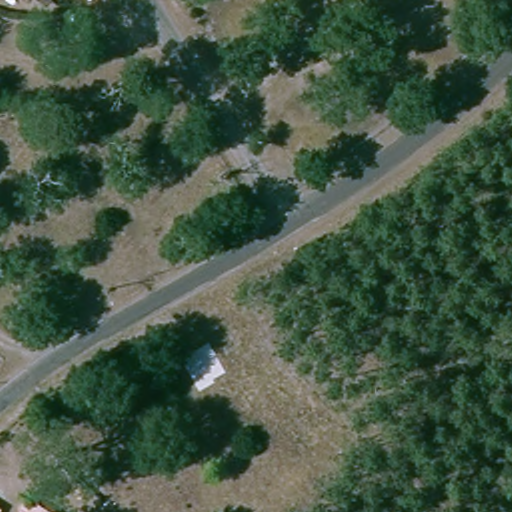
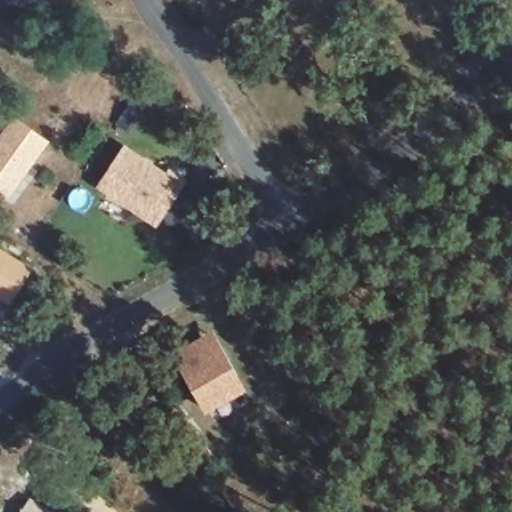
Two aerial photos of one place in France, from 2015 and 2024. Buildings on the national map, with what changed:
unchanged [(28,10),(15,0),(34,0),(28,10)]
unchanged [(47,10),(36,0),(54,0),(47,10)]
unchanged [(336,1),(334,0),(337,0),(336,1)]
new [(49,140),(14,199),(0,190),(0,135),(12,117),(49,140)]
new [(166,171),(169,166),(187,180),(156,227),(95,185),(125,143),(166,171)]
new [(32,267),(12,304),(0,297),(0,248),(32,267)]
new [(245,390),(203,412),(173,352),(212,328),(245,390)]
unchanged [(47,512),(19,512),(25,500),(47,512)]

